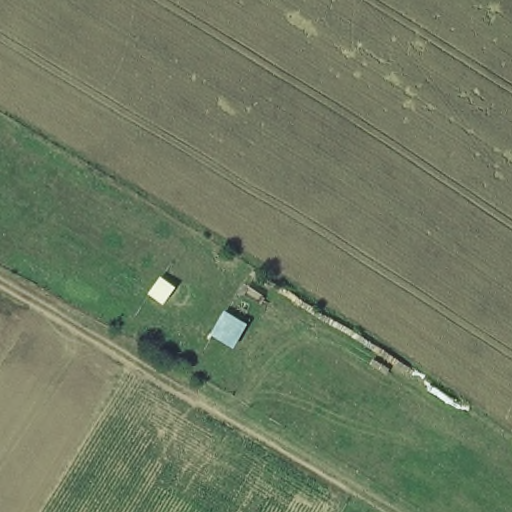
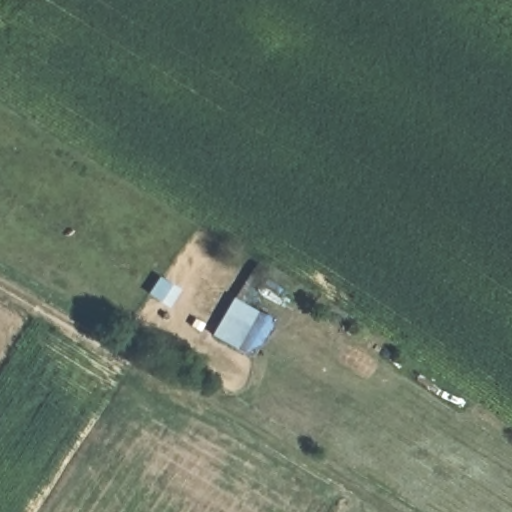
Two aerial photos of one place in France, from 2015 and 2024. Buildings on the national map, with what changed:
unchanged [(213,342),(226,316),(252,330),(239,355),(213,342)]

